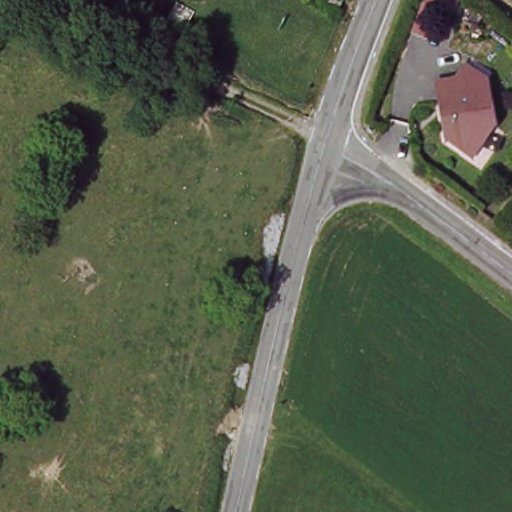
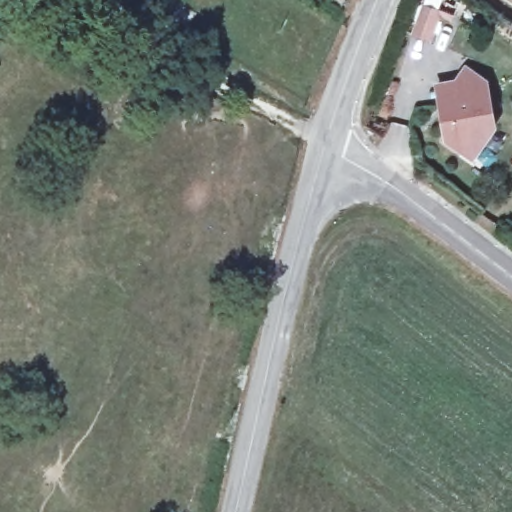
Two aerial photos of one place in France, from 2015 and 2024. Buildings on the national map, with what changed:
unchanged [(358,1),(349,17),(333,9),(337,0),(358,0),(358,1)]
unchanged [(459,149),(448,142),(441,106),(438,88),(457,84),(469,68),(491,84),(498,128),(486,145),(474,160),(459,149)]

